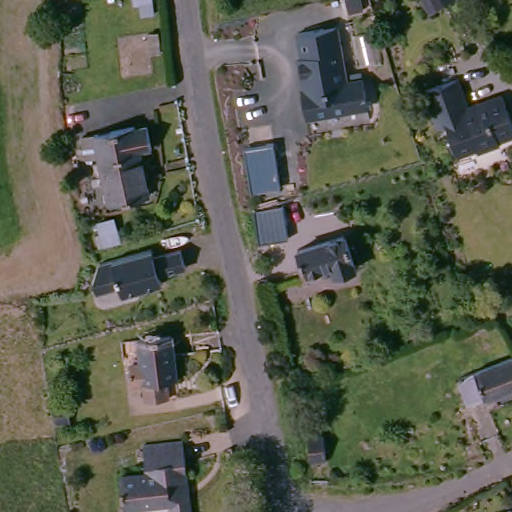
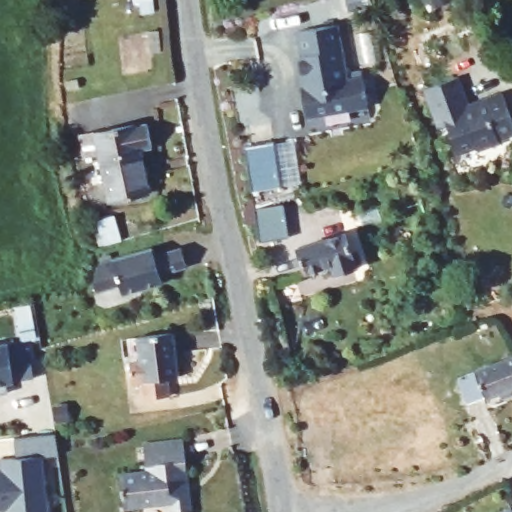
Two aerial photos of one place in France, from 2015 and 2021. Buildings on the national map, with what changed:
unchanged [(304,86),(313,85),(312,77),(307,78),(303,52),(306,52),(302,29),(339,22),(349,80),(366,76),(371,102),(309,112),(304,86)]
unchanged [(512,134),(499,139),(500,143),(477,151),(476,147),(458,154),(447,125),(438,129),(423,90),(455,77),(466,107),(503,95),(512,120),(512,134)]
unchanged [(159,195),(118,202),(114,184),(103,186),(102,179),(113,176),(109,155),(96,157),(92,135),(144,125),(144,127),(157,125),(162,148),(149,150),(159,195)]
unchanged [(267,185),(247,187),(242,147),(262,145),(267,185)]
new [(280,239),(265,243),(254,211),(272,210),(280,239)]
unchanged [(121,240),(102,245),(97,225),(115,220),(121,240)]
demolished [(278,250),(263,254),(259,235),(274,231),(278,250)]
unchanged [(356,267),(335,274),(332,264),(304,273),(296,249),(344,233),(356,267)]
unchanged [(152,248),(154,256),(181,249),(186,267),(159,275),(161,283),(122,294),(119,285),(96,291),(92,280),(99,262),(152,248)]
unchanged [(180,378),(171,380),(173,396),(151,400),(148,382),(137,385),(133,364),(145,362),(141,337),(173,332),(180,378)]
unchanged [(9,354),(30,351),(34,381),(14,384),(6,385),(8,395),(0,397),(0,347),(8,346),(9,354)]
unchanged [(511,397),(502,401),(499,394),(468,406),(458,380),(512,358),(512,390),(509,391),(511,397)]
unchanged [(326,459),(309,460),(308,435),(324,435),(326,459)]
new [(2,462),(16,460),(14,440),(55,436),(57,447),(59,458),(42,459),(46,512),(0,512),(0,462),(2,462)]
unchanged [(176,512),(175,503),(129,508),(126,474),(153,471),(150,443),(189,440),(196,512),(176,512)]
unchanged [(512,512),(505,512),(511,510),(512,512)]

